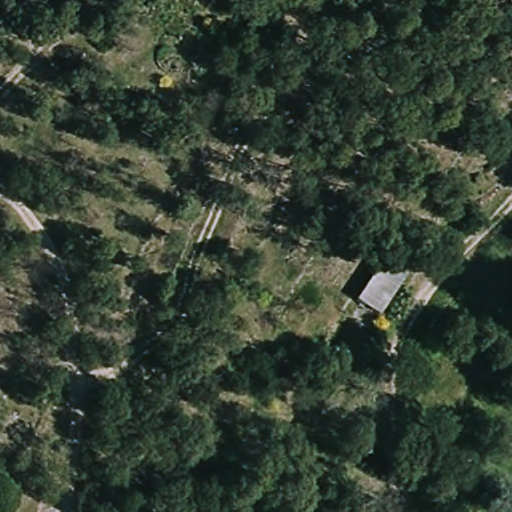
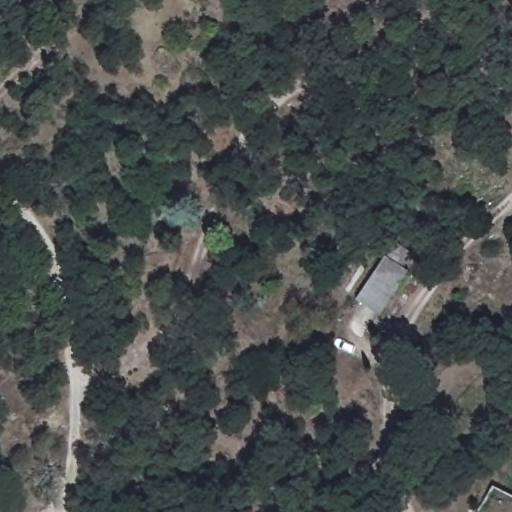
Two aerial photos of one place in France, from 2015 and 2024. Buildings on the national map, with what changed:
unchanged [(382,260),(410,273),(380,317),(357,301),(382,260)]

